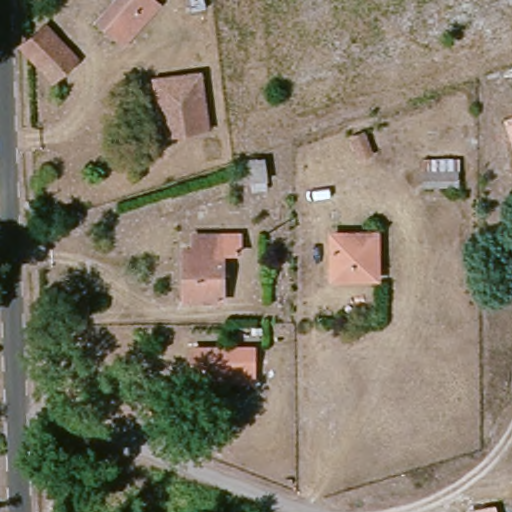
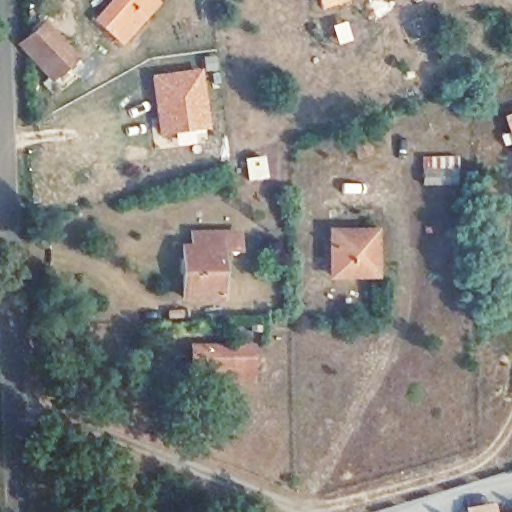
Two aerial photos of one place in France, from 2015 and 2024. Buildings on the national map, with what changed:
unchanged [(98,24),(121,0),(156,0),(165,10),(152,20),(124,45),(98,24)]
unchanged [(71,53),(54,75),(23,48),(39,27),(71,53)]
unchanged [(194,66),(207,134),(164,143),(149,76),(194,66)]
unchanged [(505,117),(512,115),(512,140),(505,117)]
unchanged [(267,176),(257,177),(257,190),(240,190),(240,175),(251,175),(250,157),(266,156),(267,176)]
unchanged [(460,164),(460,190),(428,191),(427,165),(460,164)]
unchanged [(237,264),(220,264),(221,298),(185,299),(180,245),(192,245),(192,230),(235,227),(237,264)]
unchanged [(378,236),(378,271),(326,273),(326,237),(378,236)]
unchanged [(248,346),(246,378),(226,377),(226,378),(185,376),(187,344),(248,346)]
unchanged [(495,505),(496,512),(468,512),(467,510),(495,505)]

